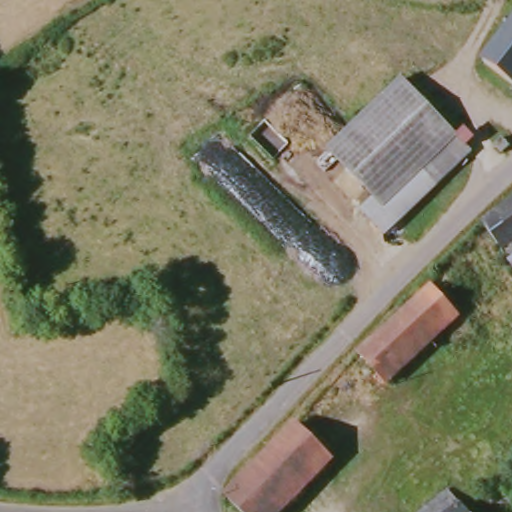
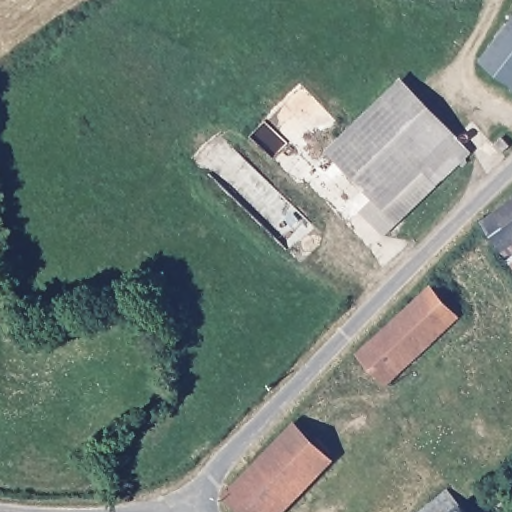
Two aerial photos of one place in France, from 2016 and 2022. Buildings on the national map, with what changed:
unchanged [(512,25),(512,85),(484,63),(512,25)]
unchanged [(327,145),(401,79),(468,152),(430,188),(414,171),(379,203),(327,145)]
unchanged [(508,135),(512,139),(512,147),(508,151),(500,143),(508,135)]
unchanged [(379,203),(414,171),(430,188),(381,235),(361,215),(377,201),(379,203)]
unchanged [(499,257),(494,250),(476,224),(512,197),(512,257),(508,250),(499,257)]
unchanged [(454,314),(383,379),(354,349),(427,285),(454,314)]
unchanged [(293,421),(334,461),(284,512),(240,512),(225,496),(293,421)]
unchanged [(461,512),(419,512),(443,491),(461,512)]

